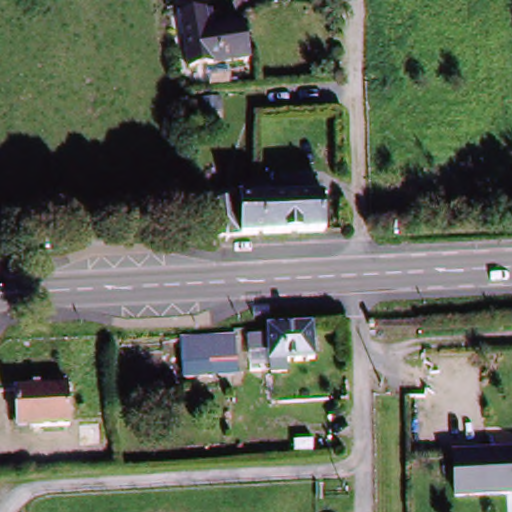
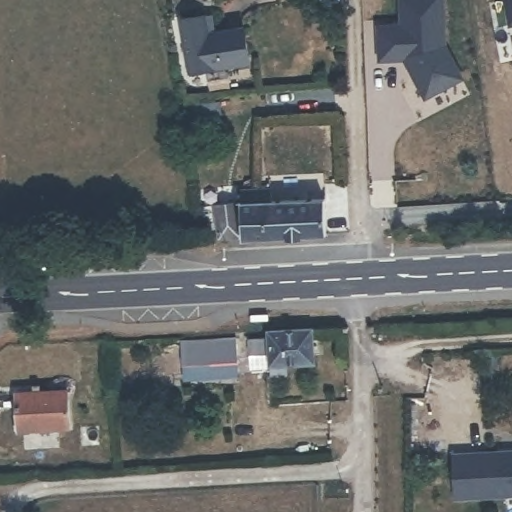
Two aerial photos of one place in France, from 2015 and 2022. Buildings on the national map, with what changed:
new [(378,25),(402,24),(400,0),(443,0),(446,45),(463,78),(425,98),(410,69),(405,59),(380,60),(378,25)]
new [(509,25),(504,0),(512,0),(512,25),(509,25)]
unchanged [(249,66),(185,71),(181,15),(209,14),(216,13),(217,30),(246,27),(249,66)]
unchanged [(236,206),(265,205),(267,204),(267,190),(282,189),(297,188),(297,204),(350,201),(352,240),(285,244),(245,245),(236,206)]
unchanged [(290,364),(288,373),(270,373),(270,353),(250,353),(250,340),(267,339),(267,328),(315,326),(316,363),(290,364)]
unchanged [(208,380),(182,382),(180,343),(234,341),(235,365),(236,379),(208,380)]
unchanged [(16,427),(13,393),(67,388),(69,425),(16,427)]
unchanged [(512,454),(512,497),(458,500),(457,456),(512,454)]

